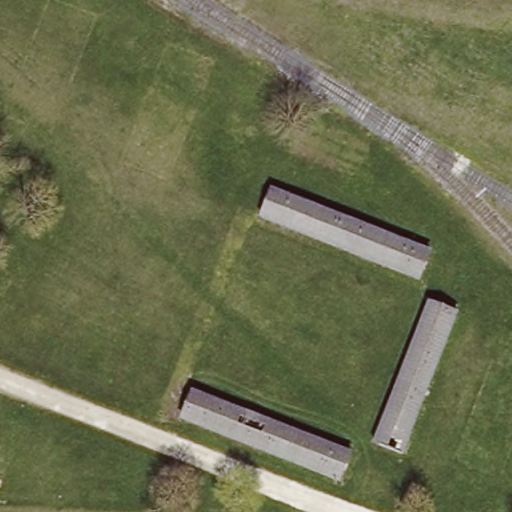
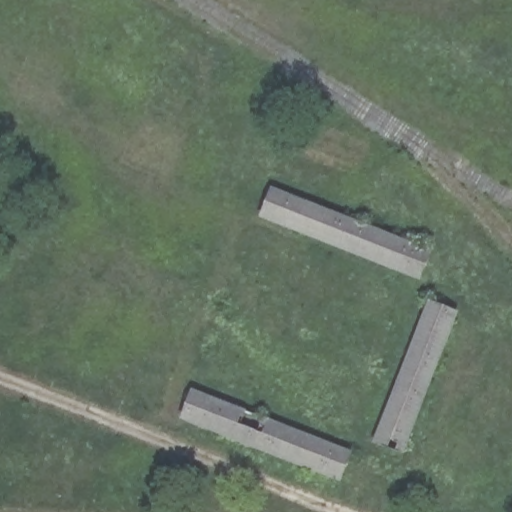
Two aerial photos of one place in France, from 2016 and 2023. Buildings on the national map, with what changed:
unchanged [(421,286),(258,223),(272,190),(434,253),(421,286)]
unchanged [(371,448),(427,302),(459,315),(404,460),(371,448)]
unchanged [(354,454),(341,488),(178,423),(191,391),(354,454)]

